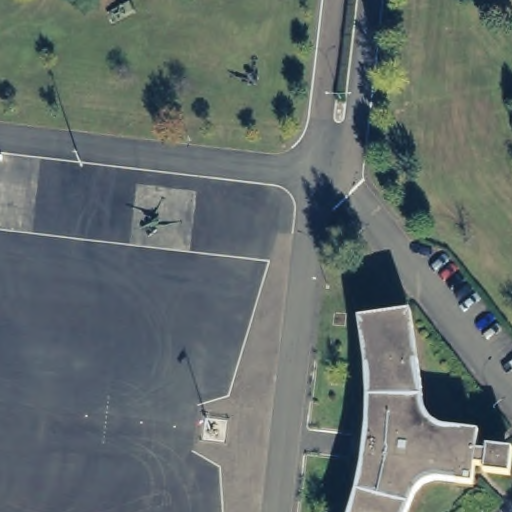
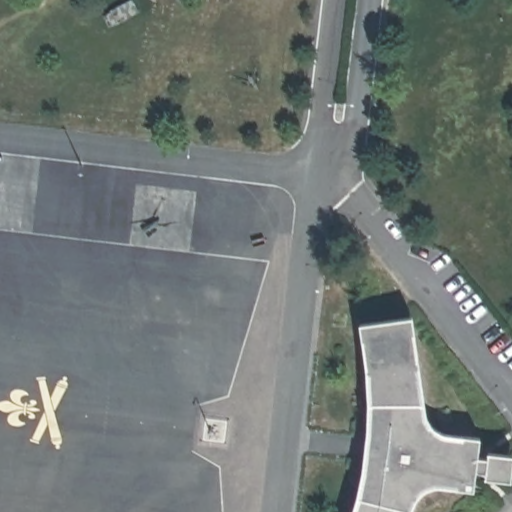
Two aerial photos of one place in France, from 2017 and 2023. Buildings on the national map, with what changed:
unchanged [(423,414),(442,432),(482,435),(481,450),(512,453),(512,469),(511,476),(476,472),(476,483),(438,480),(421,487),(413,500),(408,512),(353,512),(361,492),(369,440),(371,392),(358,323),(410,313),(423,414)]

